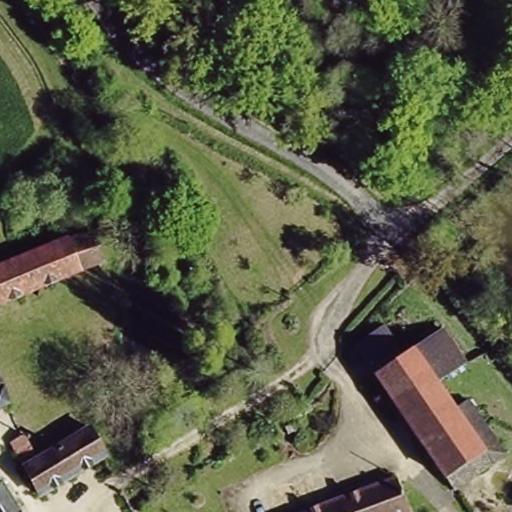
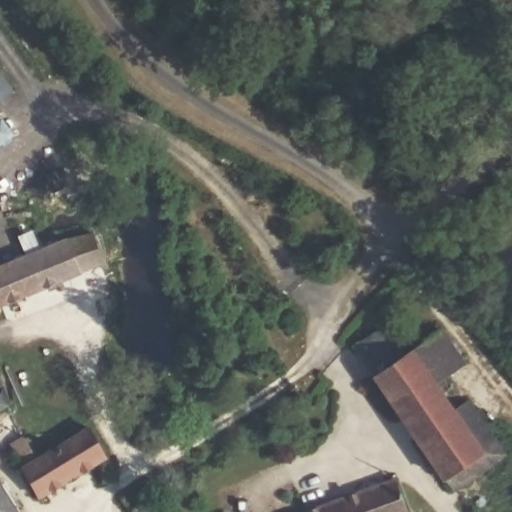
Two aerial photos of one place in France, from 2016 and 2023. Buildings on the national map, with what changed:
unchanged [(0,306),(0,261),(95,225),(112,262),(0,306)]
unchanged [(378,322),(398,352),(410,344),(434,380),(450,404),(463,396),(501,451),(450,486),(351,341),(378,322)]
unchanged [(462,360),(434,380),(410,344),(437,327),(462,360)]
unchanged [(11,402),(0,407),(0,382),(11,402)]
unchanged [(45,493),(10,432),(33,420),(50,450),(110,419),(122,440),(127,450),(45,493)]
unchanged [(395,475),(410,512),(297,512),(395,475)]
unchanged [(7,481),(25,512),(0,512),(0,484),(7,481)]

